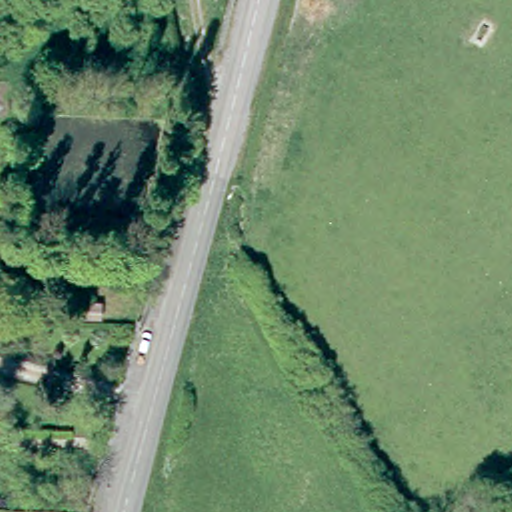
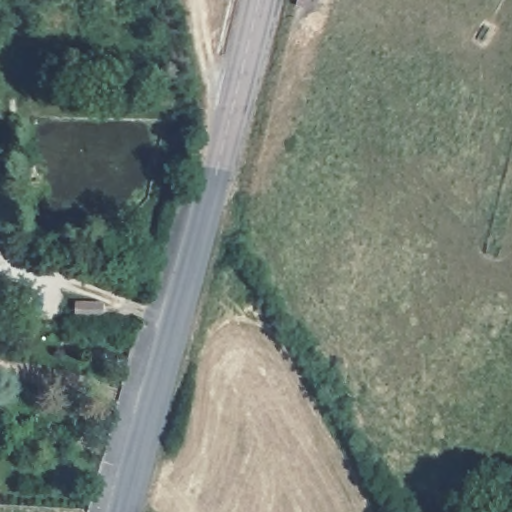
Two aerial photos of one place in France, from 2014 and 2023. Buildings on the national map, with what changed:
unchanged [(104,318),(79,317),(79,301),(105,301),(104,318)]

